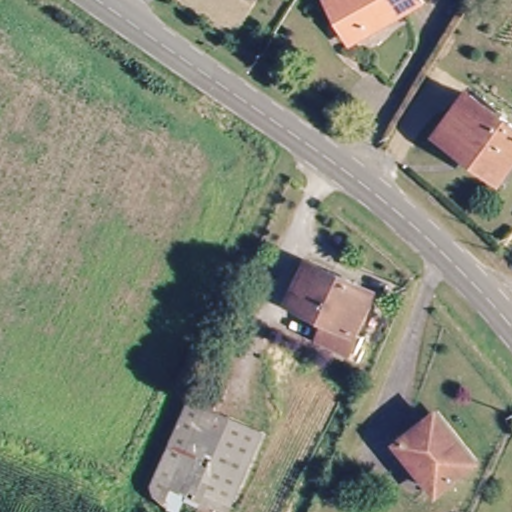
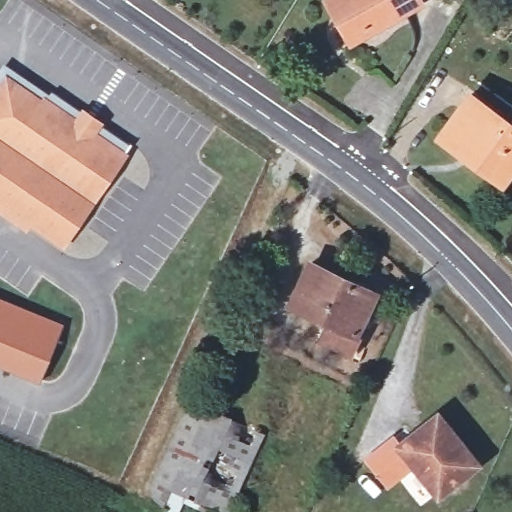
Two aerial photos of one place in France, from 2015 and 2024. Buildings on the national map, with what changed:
unchanged [(371,24),(379,36),(362,44),(333,2),(336,0),(424,0),(425,1),(413,10),(406,1),(371,24)]
new [(63,248),(30,226),(25,232),(0,214),(0,84),(7,75),(42,99),(45,96),(75,119),(83,109),(104,123),(97,133),(128,155),(63,248)]
unchanged [(512,126),(512,164),(500,180),(447,136),(478,99),(512,126)]
unchanged [(380,290),(360,344),(325,332),(331,318),(305,306),(320,265),(380,290)]
new [(39,381),(0,366),(0,299),(62,324),(39,381)]
unchanged [(226,512),(217,512),(151,491),(197,387),(220,397),(214,408),(265,435),(226,512)]
unchanged [(471,469),(433,496),(400,443),(439,418),(471,469)]

